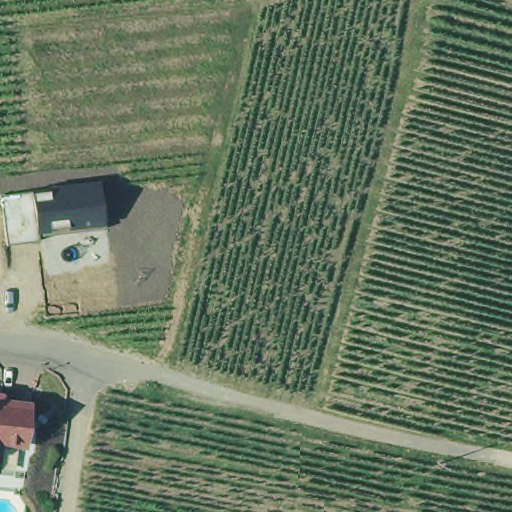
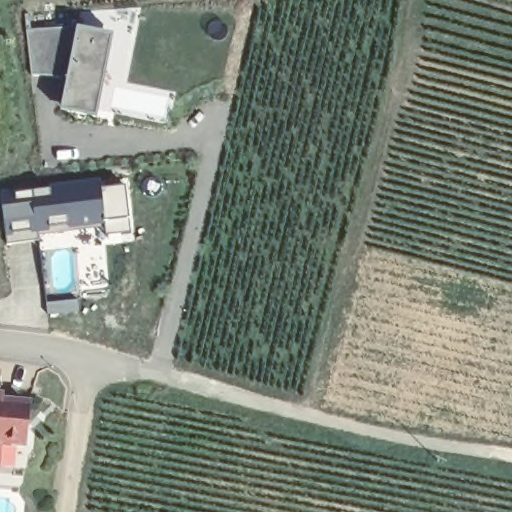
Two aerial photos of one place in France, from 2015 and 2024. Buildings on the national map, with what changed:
new [(79,27),(78,34),(110,40),(96,110),(62,104),(67,80),(47,75),(31,76),(27,30),(79,27)]
unchanged [(104,229),(38,237),(39,241),(6,245),(0,195),(30,191),(99,183),(104,229)]
unchanged [(24,433),(0,431),(0,391),(28,394),(24,433)]

